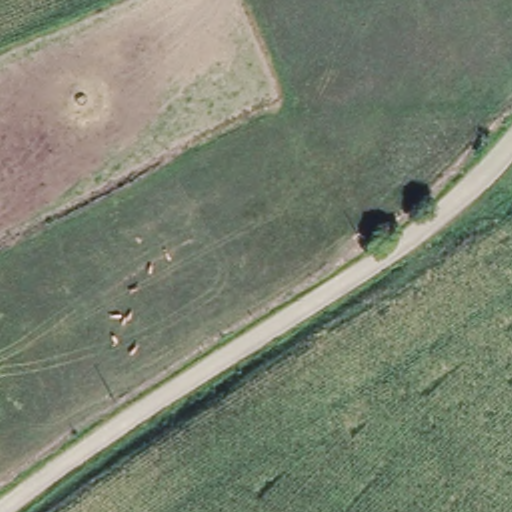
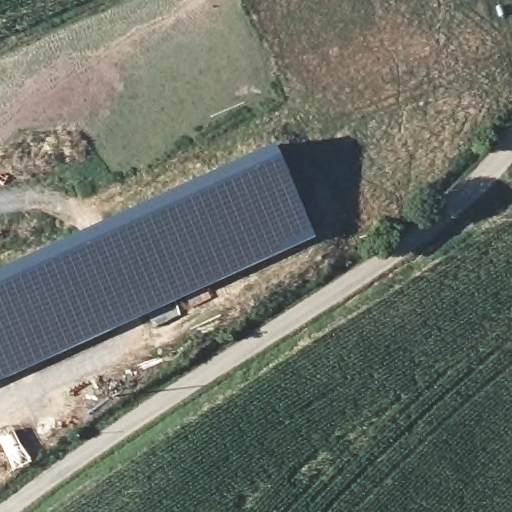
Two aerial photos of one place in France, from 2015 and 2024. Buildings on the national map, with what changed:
new [(269,146),(285,175),(312,239),(174,304),(178,315),(155,326),(150,314),(0,380),(0,265),(217,168),(269,146)]

